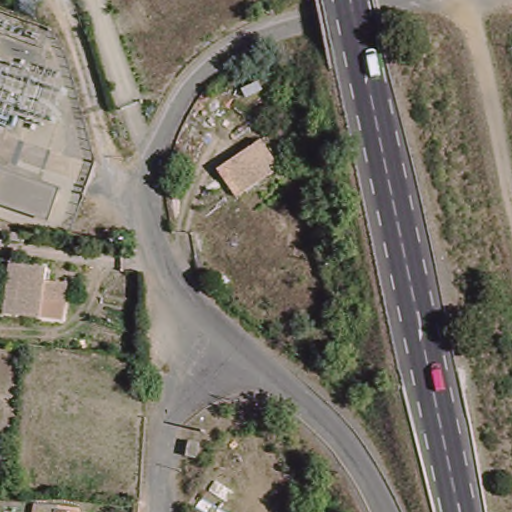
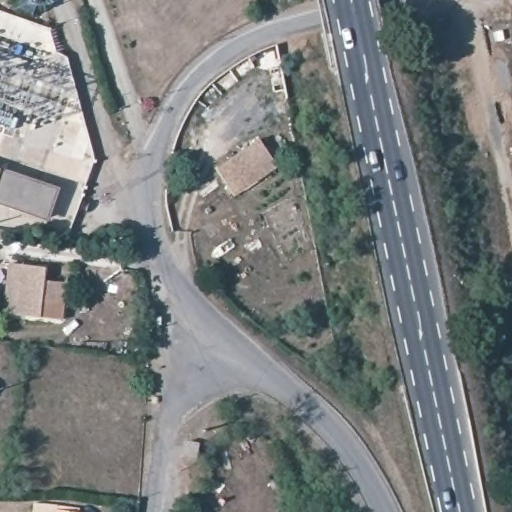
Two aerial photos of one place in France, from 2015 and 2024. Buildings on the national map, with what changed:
unchanged [(216,168),(259,140),(273,156),(280,152),(285,160),(236,195),(216,168)]
unchanged [(53,217),(0,200),(0,166),(63,189),(53,217)]
unchanged [(63,320),(14,313),(1,312),(6,262),(19,263),(43,267),(41,297),(64,301),(63,320)]
unchanged [(221,416),(214,431),(204,426),(211,410),(221,416)]

